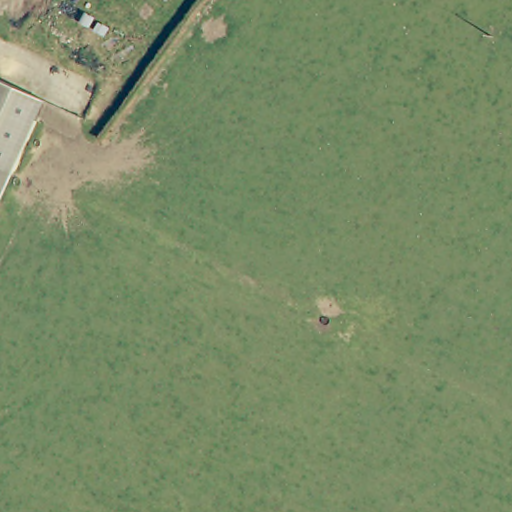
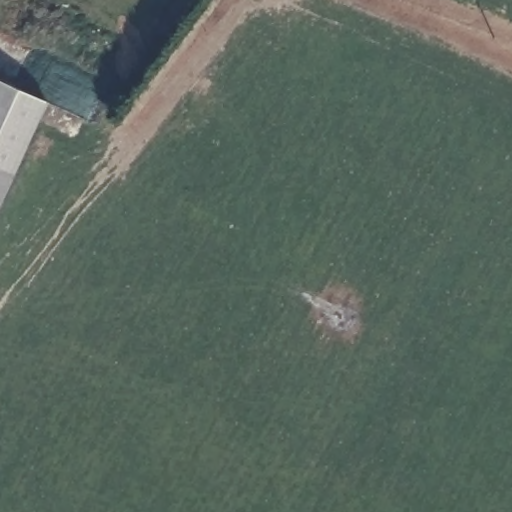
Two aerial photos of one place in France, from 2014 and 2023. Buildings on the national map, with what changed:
unchanged [(0,191),(0,78),(41,95),(0,191)]

